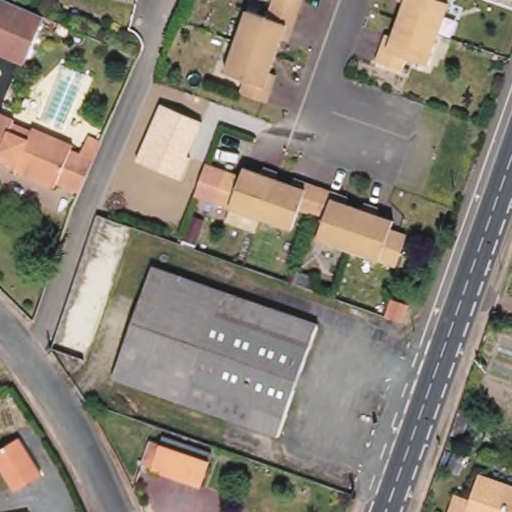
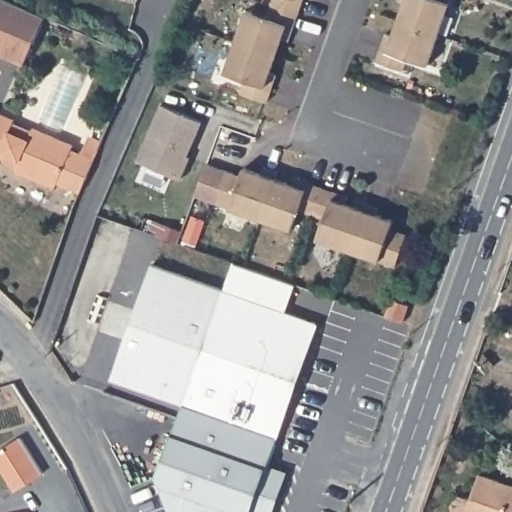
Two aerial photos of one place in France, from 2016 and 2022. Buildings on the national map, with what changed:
unchanged [(40,16),(19,62),(0,54),(0,0),(3,0),(40,16)]
unchanged [(293,14),(292,15),(283,40),(277,39),(271,55),(271,56),(266,70),(265,72),(271,75),(263,98),(262,102),(251,98),(237,93),(236,92),(237,90),(240,80),(220,72),(220,71),(231,40),(242,10),(245,10),(262,17),(267,5),(267,4),(269,0),(298,0),(293,14)]
unchanged [(443,4),(432,35),(421,65),(401,58),(396,71),(371,62),(380,35),(387,37),(393,20),(399,3),(393,0),(434,0),(443,4)]
unchanged [(161,105),(201,122),(186,156),(190,159),(180,179),(137,160),(161,105)]
unchanged [(10,122),(9,125),(27,133),(28,130),(69,147),(66,154),(76,157),(84,140),(97,145),(90,162),(89,163),(75,196),(51,186),(50,191),(9,174),(10,171),(0,167),(0,118),(10,122)]
unchanged [(220,170),(221,171),(236,176),(239,167),(249,171),(256,174),(259,167),(272,172),(271,176),(270,179),(286,185),(289,179),(296,181),(315,189),(329,193),(342,198),(340,205),(352,209),(356,210),(358,204),(372,209),(370,215),(372,216),(387,222),(385,230),(393,234),(400,236),(400,239),(392,262),(390,268),(363,258),(355,255),(343,251),(342,250),(331,246),(312,240),(317,226),(319,219),(306,215),(294,210),(287,230),(274,225),(256,219),(241,214),(209,202),(220,170)]
unchanged [(208,225),(205,235),(196,232),(200,222),(208,225)]
unchanged [(313,322),(272,435),(108,378),(149,265),(313,322)]
unchanged [(407,306),(402,325),(385,318),(390,301),(407,306)]
new [(267,465),(286,472),(273,512),(170,512),(156,473),(173,432),(183,404),(272,435),(278,436),(267,465)]
unchanged [(12,437),(35,473),(9,490),(0,476),(0,444),(12,437)]
demolished [(200,465),(192,490),(141,472),(150,447),(200,465)]
unchanged [(476,473),(512,487),(512,512),(445,512),(451,494),(467,499),(476,473)]

